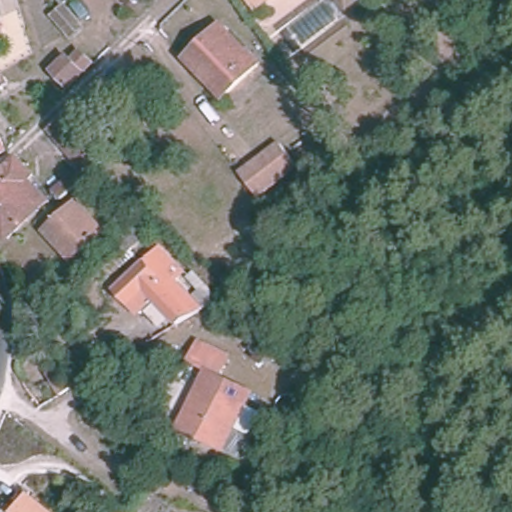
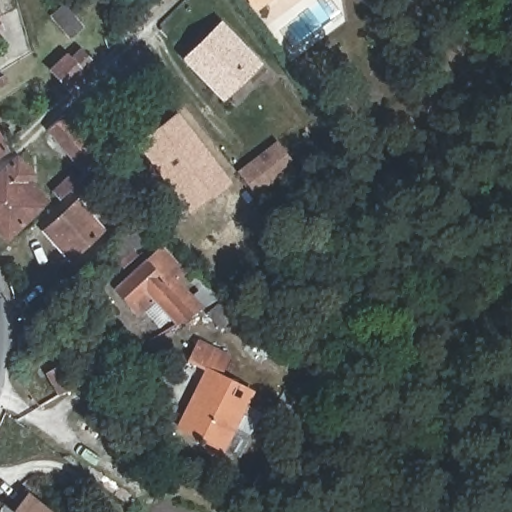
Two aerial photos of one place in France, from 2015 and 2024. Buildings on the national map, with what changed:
unchanged [(51,9),(43,0),(59,0),(60,1),(51,9)]
unchanged [(245,0),(271,0),(254,13),(245,0)]
unchanged [(291,0),(297,0),(294,3),(291,0)]
unchanged [(58,10),(75,31),(61,44),(43,21),(58,10)]
unchanged [(0,24),(3,31),(0,32),(0,24)]
unchanged [(220,25),(258,64),(223,98),(185,60),(220,25)]
unchanged [(85,56),(60,81),(46,67),(61,51),(67,56),(76,48),(85,56)]
new [(135,143),(178,111),(232,183),(190,215),(135,143)]
unchanged [(98,161),(81,175),(42,130),(59,114),(98,161)]
unchanged [(0,150),(0,141),(4,148),(0,150)]
unchanged [(240,172),(280,141),(299,165),(259,196),(240,172)]
unchanged [(26,181),(45,201),(7,238),(0,231),(0,174),(16,159),(32,175),(26,181)]
unchanged [(54,193),(73,176),(79,182),(60,199),(54,193)]
unchanged [(58,246),(44,231),(78,202),(102,231),(76,253),(69,259),(58,246)]
unchanged [(108,254),(133,232),(141,241),(116,263),(108,254)]
unchanged [(162,285),(149,297),(141,289),(139,291),(125,275),(172,233),(178,240),(173,243),(189,261),(185,264),(212,295),(186,310),(162,285)]
unchanged [(195,345),(228,361),(218,380),(249,395),(220,454),(175,433),(204,375),(185,366),(195,345)]
unchanged [(43,375),(56,367),(69,389),(56,397),(43,375)]
unchanged [(53,510),(51,512),(21,512),(15,508),(29,491),(53,510)]

